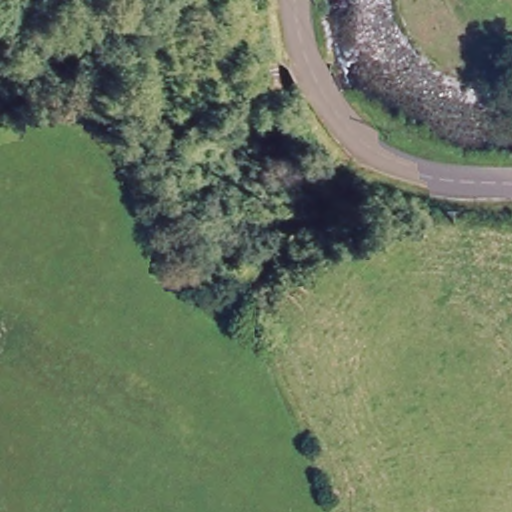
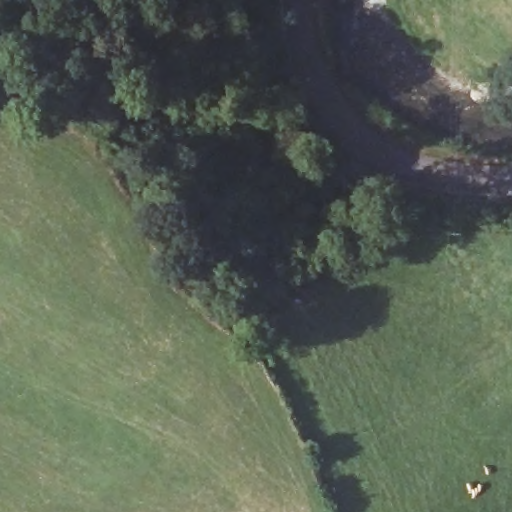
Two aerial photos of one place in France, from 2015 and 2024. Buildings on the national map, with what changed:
[]

